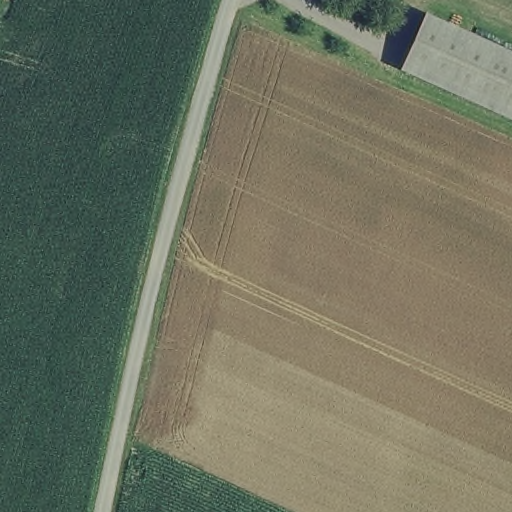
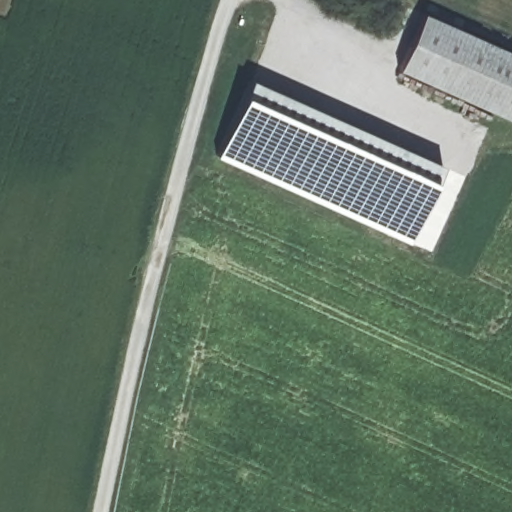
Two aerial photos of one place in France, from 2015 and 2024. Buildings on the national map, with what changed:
unchanged [(421,15),(512,54),(512,119),(396,69),(421,15)]
new [(221,161),(258,85),(448,171),(413,245),(221,161)]

